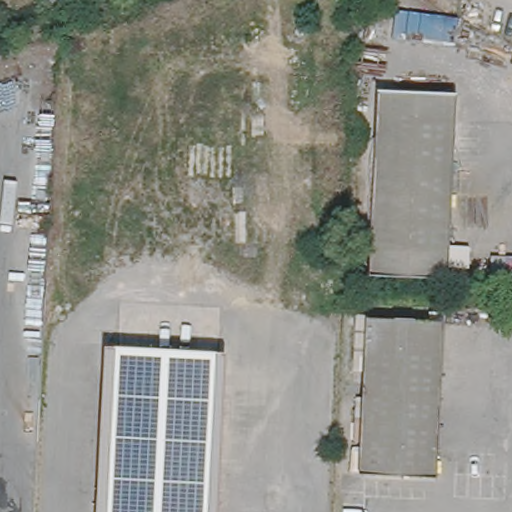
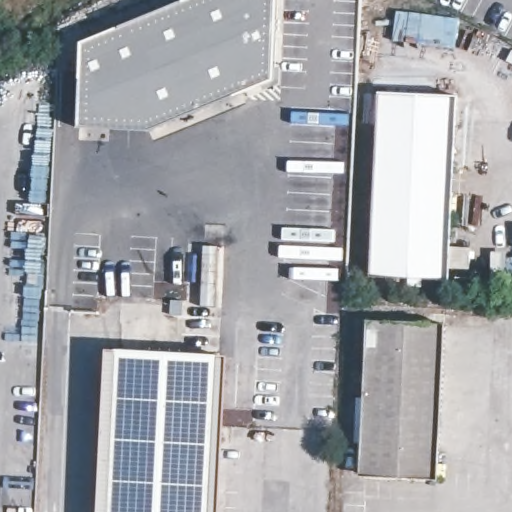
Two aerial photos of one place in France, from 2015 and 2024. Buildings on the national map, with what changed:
new [(190,0),(278,0),(274,79),(153,130),(79,127),(85,41),(190,0)]
unchanged [(374,271),(383,90),(460,91),(450,275),(374,271)]
new [(206,247),(221,247),(218,308),(203,307),(206,247)]
unchanged [(447,320),(440,475),(364,472),(371,317),(447,320)]
unchanged [(115,512),(125,351),(226,356),(217,512),(115,512)]

